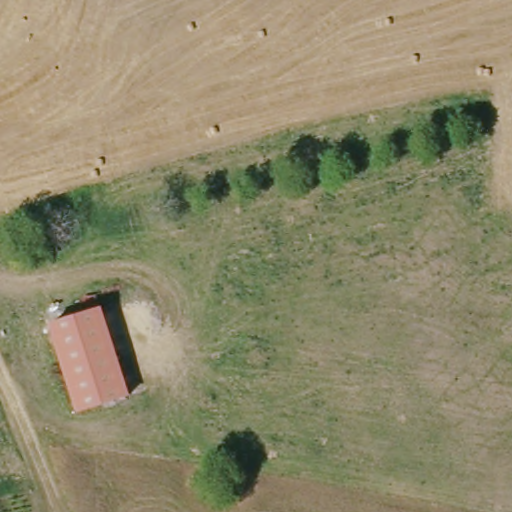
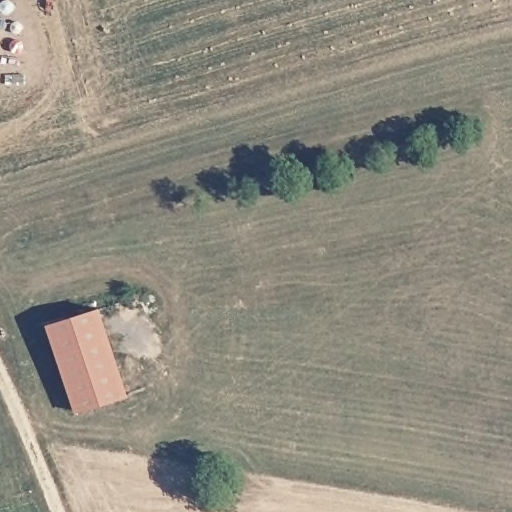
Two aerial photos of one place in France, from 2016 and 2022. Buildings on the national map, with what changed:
unchanged [(100,307),(108,331),(124,378),(129,394),(78,410),(65,371),(57,346),(50,323),(100,307)]

